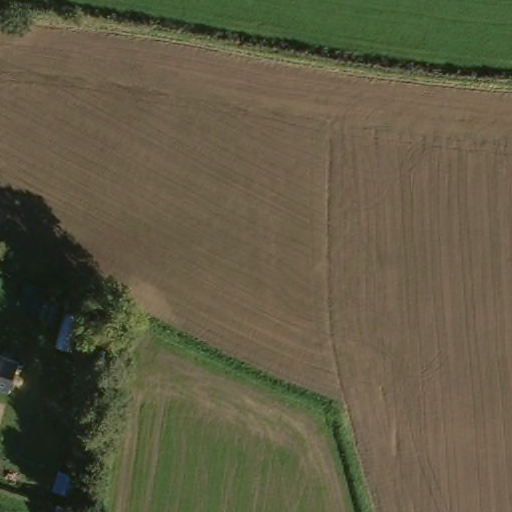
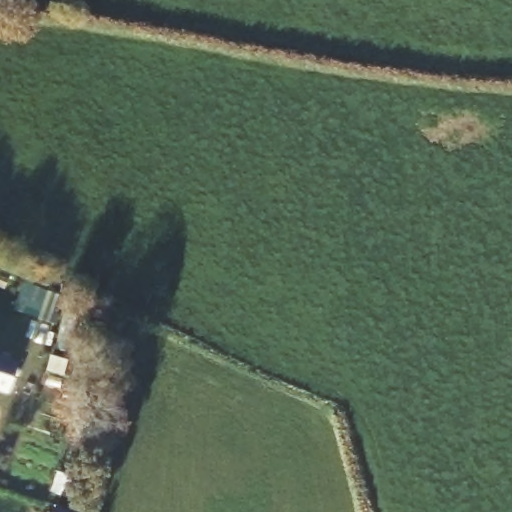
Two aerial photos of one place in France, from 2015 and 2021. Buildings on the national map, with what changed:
unchanged [(0,347),(17,352),(8,382),(0,379),(0,346),(0,347)]
unchanged [(66,512),(48,512),(50,507),(66,512)]

